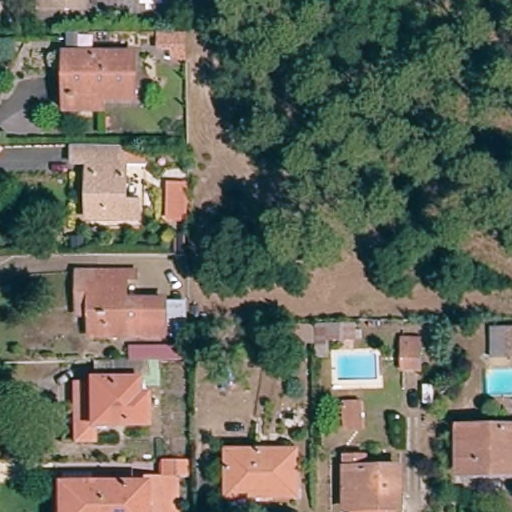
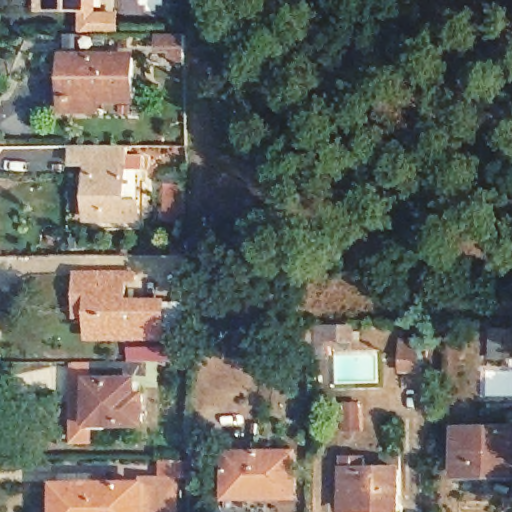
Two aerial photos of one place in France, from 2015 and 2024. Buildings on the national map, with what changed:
unchanged [(86,4),(42,4),(41,0),(86,0),(86,4)]
unchanged [(133,97),(102,97),(101,102),(91,102),(91,107),(64,107),(64,54),(133,54),(133,97)]
unchanged [(130,175),(131,209),(144,209),(144,225),(94,225),(93,180),(108,180),(107,173),(103,173),(76,173),(76,153),(103,152),(131,152),(131,175),(130,175)]
unchanged [(189,214),(168,214),(168,187),(189,187),(189,214)]
unchanged [(184,272),(159,271),(160,256),(184,256),(184,272)]
unchanged [(125,277),(125,303),(165,303),(165,339),(90,340),(90,314),(79,314),(79,294),(80,277),(125,277)]
unchanged [(493,335),(512,335),(512,359),(493,359),(493,335)]
unchanged [(418,374),(403,374),(403,344),(418,344),(418,374)]
unchanged [(144,400),(145,432),(93,432),(94,448),(74,447),(73,387),(91,386),(90,367),(138,367),(139,386),(139,399),(144,400)]
unchanged [(455,432),(512,431),(512,478),(455,478),(455,432)]
unchanged [(295,500),(228,500),(228,456),(295,455),(295,500)]
unchanged [(60,493),(60,481),(88,481),(88,493),(142,493),(143,484),(162,484),(162,466),(191,466),(192,489),(178,489),(178,512),(56,512),(56,493),(60,493)]
unchanged [(345,512),(345,473),(400,471),(400,512),(345,512)]

